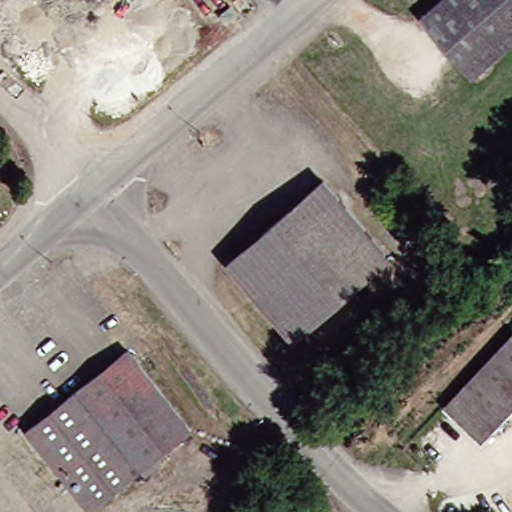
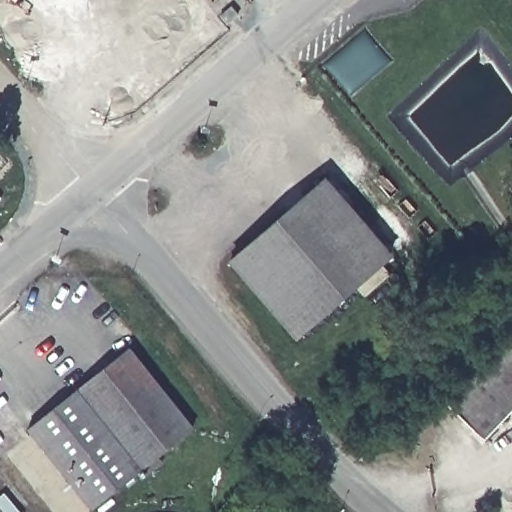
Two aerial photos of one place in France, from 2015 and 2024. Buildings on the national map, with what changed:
demolished [(417,20),(440,0),(512,0),(512,41),(468,79),(417,20)]
unchanged [(221,32),(214,25),(225,15),(232,23),(221,32)]
unchanged [(384,259),(290,341),(224,265),(318,183),(384,259)]
unchanged [(439,406),(510,331),(512,333),(512,407),(478,443),(439,406)]
unchanged [(124,351),(187,430),(85,512),(84,512),(22,433),(124,351)]

